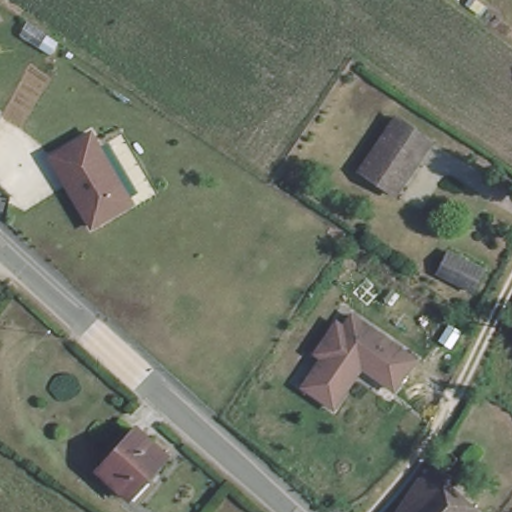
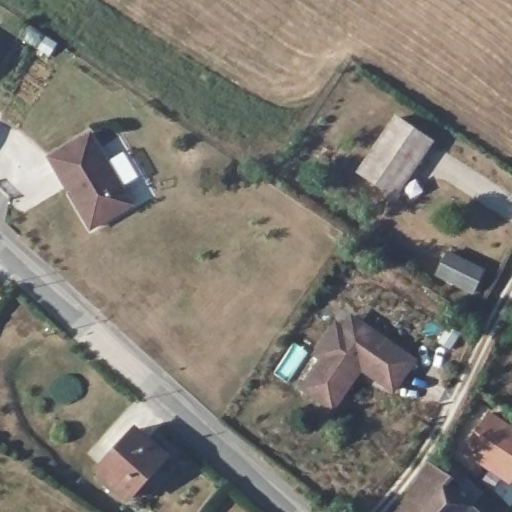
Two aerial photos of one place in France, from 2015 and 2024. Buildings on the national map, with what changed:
unchanged [(432,147),(398,196),(359,169),(395,119),(432,147)]
unchanged [(132,205),(92,228),(51,157),(91,134),(132,205)]
unchanged [(469,283),(430,263),(444,238),(482,258),(469,283)]
unchanged [(339,410),(308,390),(327,360),(320,356),(340,325),(347,330),(355,317),(369,327),(419,358),(399,389),(365,367),(358,380),(339,410)]
new [(487,408),(512,425),(512,480),(509,485),(457,448),(487,408)]
unchanged [(163,450),(129,496),(99,472),(133,427),(163,450)]
unchanged [(449,485),(477,507),(472,512),(399,512),(425,473),(430,464),(430,463),(454,478),(449,485)]

